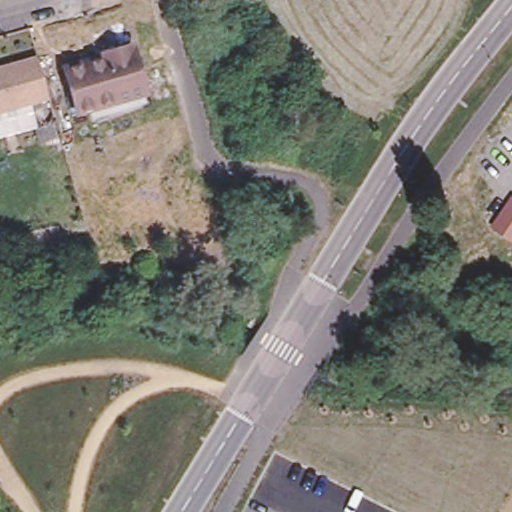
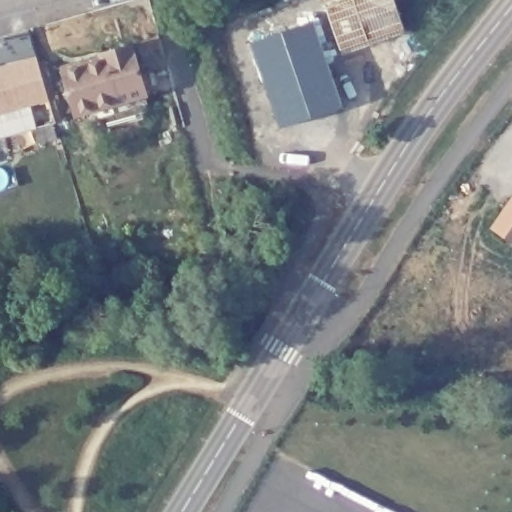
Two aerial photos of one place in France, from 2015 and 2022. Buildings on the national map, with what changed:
new [(340,51),(325,9),(349,0),(394,0),(404,29),(340,51)]
new [(250,43),(312,21),(342,108),(280,129),(250,43)]
unchanged [(147,95),(89,111),(80,114),(69,73),(107,62),(105,56),(134,49),(147,95)]
unchanged [(45,71),(52,95),(0,111),(0,66),(40,55),(41,55),(45,71)]
unchanged [(55,121),(60,136),(40,140),(37,126),(55,121)]
unchanged [(512,240),(493,227),(510,203),(512,204),(512,240)]
unchanged [(4,248),(7,263),(0,264),(0,249),(4,248)]

